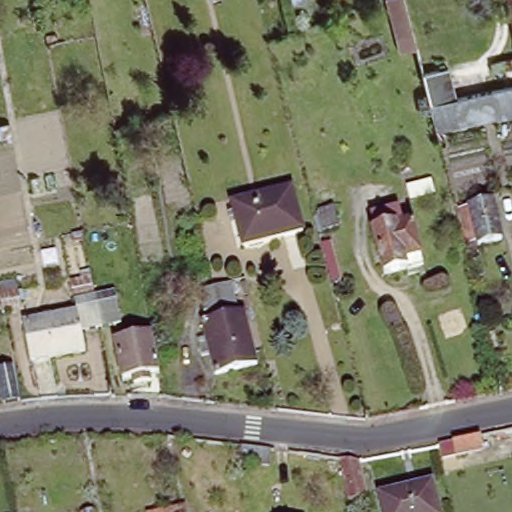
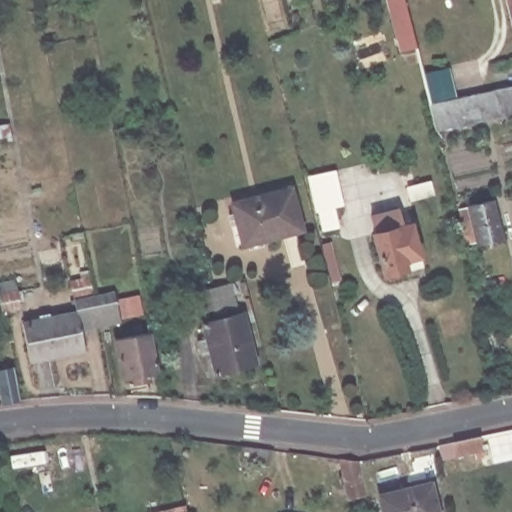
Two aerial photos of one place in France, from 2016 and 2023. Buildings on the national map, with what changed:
unchanged [(396,49),(392,34),(407,30),(411,45),(396,49)]
unchanged [(423,73),(449,67),(456,98),(512,86),(512,118),(436,131),(423,73)]
unchanged [(231,203),(294,185),(307,233),(245,251),(231,203)]
unchanged [(468,205),(492,200),(500,239),(477,244),(468,205)]
unchanged [(333,206),(340,228),(323,232),(317,211),(320,210),(333,206)]
unchanged [(424,278),(408,282),(406,276),(384,282),(374,240),(376,240),(371,221),(398,215),(401,227),(411,225),(424,278)]
unchanged [(93,279),(96,296),(77,300),(74,283),(93,279)]
unchanged [(228,288),(251,370),(210,380),(205,359),(198,361),(195,349),(201,348),(197,331),(216,326),(212,314),(201,316),(197,296),(209,293),(228,288)]
unchanged [(20,311),(0,315),(0,312),(0,296),(16,293),(20,311)]
unchanged [(88,353),(33,364),(25,326),(80,315),(78,303),(98,299),(118,295),(125,325),(105,329),(84,333),(88,353)]
unchanged [(158,369),(147,371),(149,378),(132,381),(131,374),(122,376),(115,337),(151,330),(158,369)]
unchanged [(0,373),(11,371),(17,403),(1,407),(0,399),(0,373)]
unchanged [(482,451),(455,457),(453,449),(448,450),(447,445),(480,438),(482,451)]
unchanged [(368,504),(362,505),(360,498),(348,501),(338,461),(358,464),(368,504)]
unchanged [(443,512),(388,512),(385,498),(436,485),(443,512)]
unchanged [(95,510),(95,512),(87,512),(95,510)]

